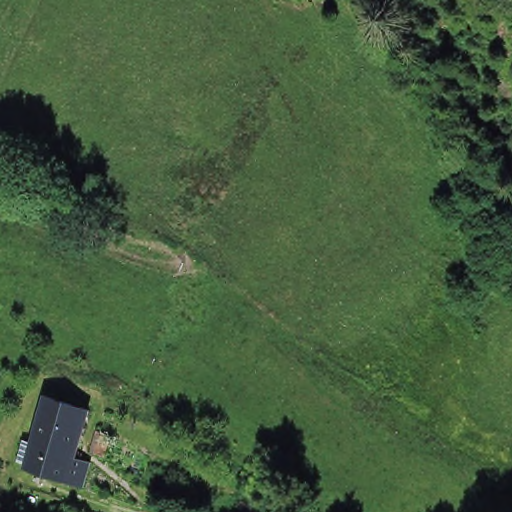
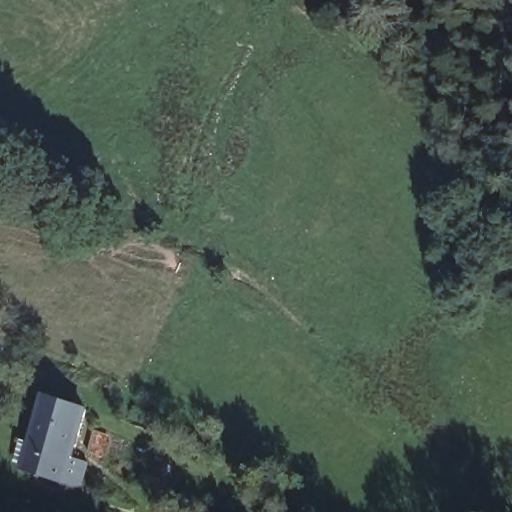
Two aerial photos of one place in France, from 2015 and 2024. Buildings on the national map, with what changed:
unchanged [(71,480),(55,474),(13,459),(40,386),(81,401),(64,447),(81,453),(71,480)]
unchanged [(94,447),(83,443),(90,420),(103,424),(94,447)]

